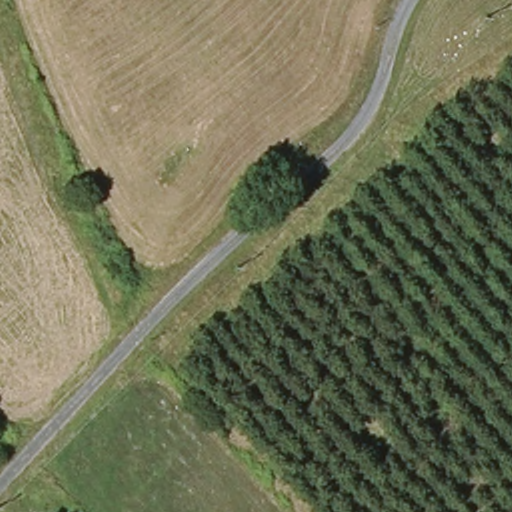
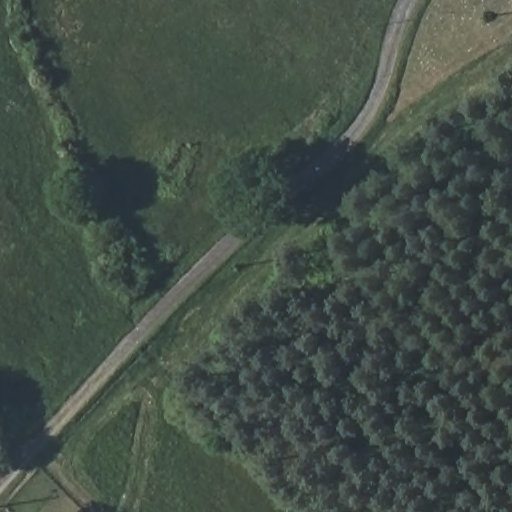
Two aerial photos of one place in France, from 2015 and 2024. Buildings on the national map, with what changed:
[]

